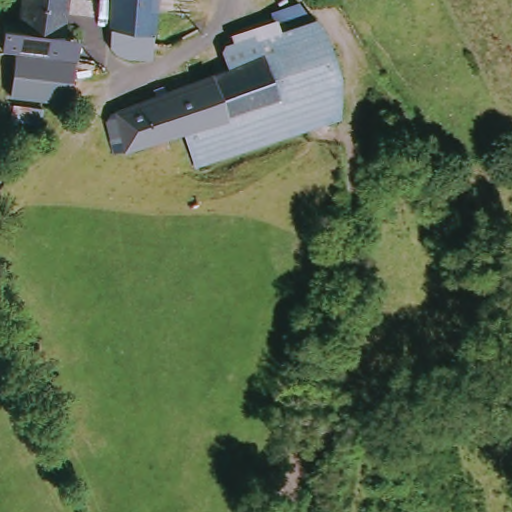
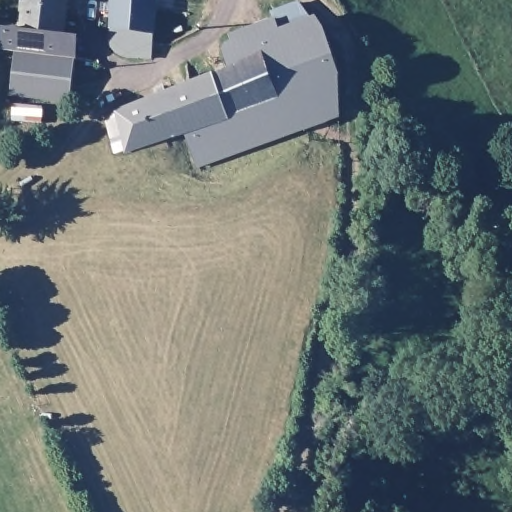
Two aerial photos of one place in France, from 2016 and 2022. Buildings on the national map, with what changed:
unchanged [(24,0),(66,0),(64,31),(20,30),(24,0)]
unchanged [(112,47),(115,33),(114,0),(157,0),(154,37),(153,47),(112,47)]
unchanged [(214,165),(196,130),(133,151),(118,114),(160,97),(157,91),(166,87),(170,94),(221,73),(238,117),(289,96),(277,73),(260,24),(275,18),(272,11),(301,0),(313,19),(320,15),(327,28),(349,74),(350,109),(214,165)]
unchanged [(232,69),(225,52),(225,47),(236,43),(233,35),(260,24),(277,73),(289,96),(238,117),(221,73),(232,69)]
unchanged [(64,31),(79,35),(72,103),(10,96),(15,52),(1,51),(4,27),(20,30),(64,31)]

